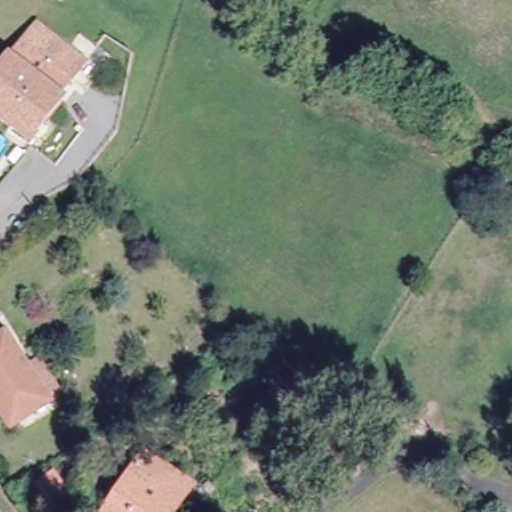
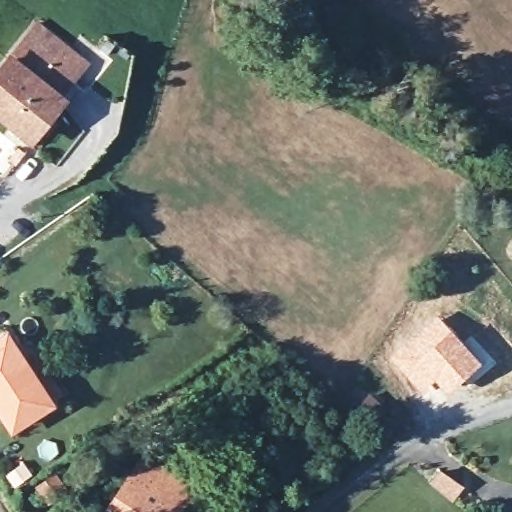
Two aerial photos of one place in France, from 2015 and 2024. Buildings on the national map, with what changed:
unchanged [(60,98),(62,99),(31,139),(0,114),(0,72),(39,23),(88,63),(60,98)]
new [(437,313),(482,362),(447,394),(435,379),(420,392),(390,357),(437,313)]
unchanged [(55,391),(45,398),(9,421),(0,408),(0,334),(2,333),(22,363),(33,356),(55,391)]
unchanged [(375,420),(360,407),(370,396),(385,409),(375,420)]
unchanged [(170,468),(194,483),(180,506),(176,512),(110,512),(145,453),(170,468)]
new [(439,468),(465,486),(452,503),(427,482),(439,468)]
unchanged [(47,499),(38,486),(55,475),(64,487),(47,499)]

